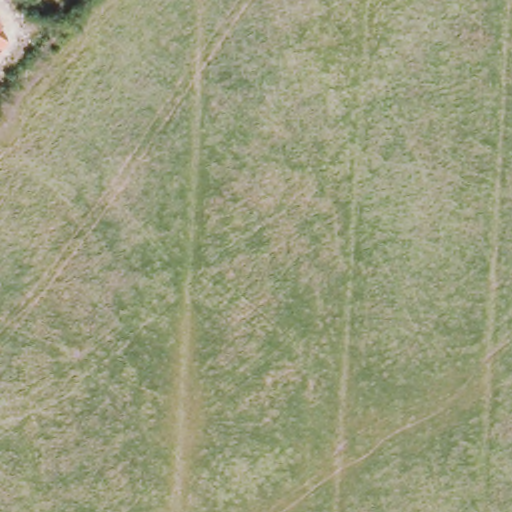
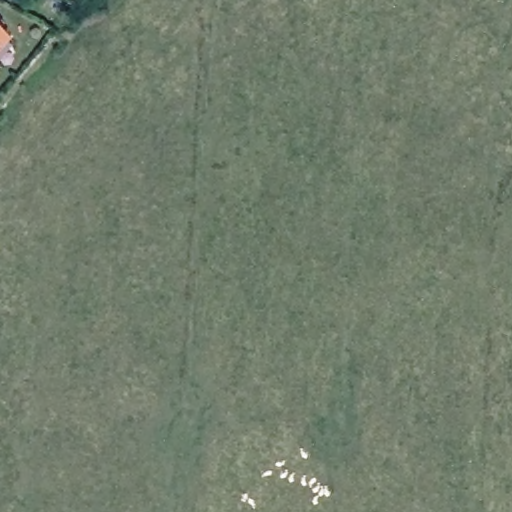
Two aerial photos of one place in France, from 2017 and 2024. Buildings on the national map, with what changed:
unchanged [(3,21),(0,27),(0,19),(3,21)]
unchanged [(7,35),(0,44),(0,31),(7,35)]

